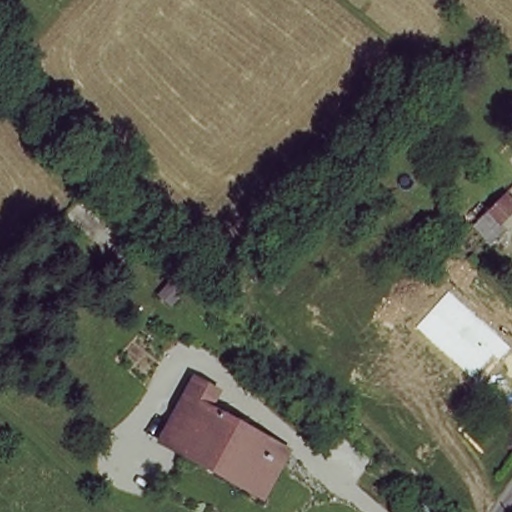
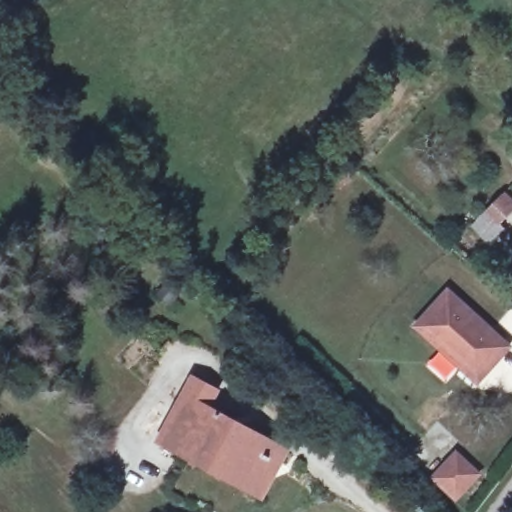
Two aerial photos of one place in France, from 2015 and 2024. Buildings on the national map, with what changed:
unchanged [(498,233),(512,214),(512,244),(505,239),(498,233)]
new [(512,346),(512,347),(477,387),(413,327),(447,287),(512,346)]
unchanged [(246,478),(226,465),(218,475),(154,437),(189,377),(211,390),(202,406),(264,445),(246,478)]
unchanged [(277,453),(252,496),(218,475),(226,465),(246,478),(264,445),(277,453)]
new [(457,450),(482,474),(455,504),(430,479),(457,450)]

